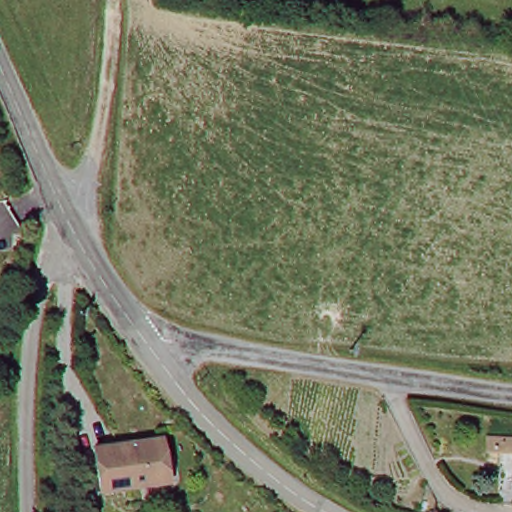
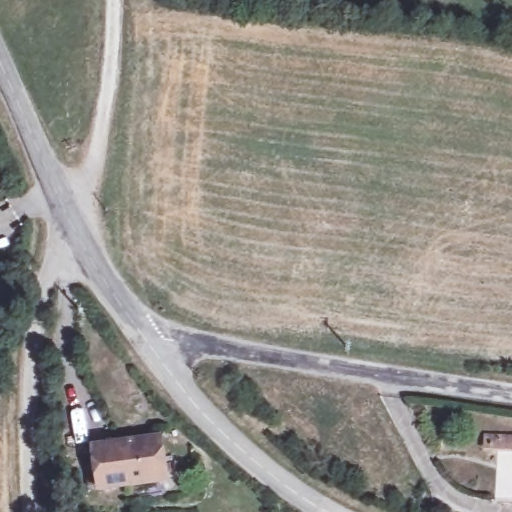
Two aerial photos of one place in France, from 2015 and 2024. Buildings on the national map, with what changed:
unchanged [(100,491),(95,449),(160,443),(164,484),(100,491)]

